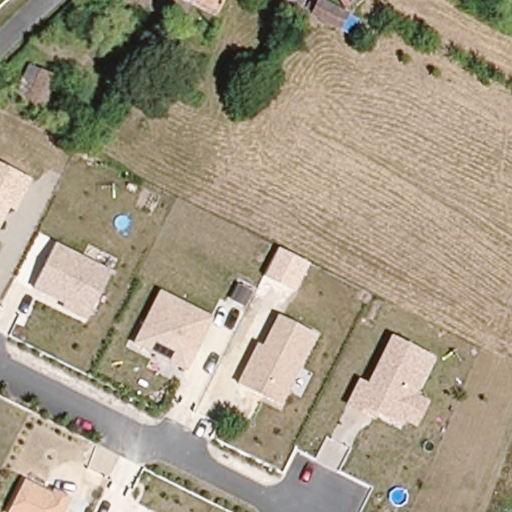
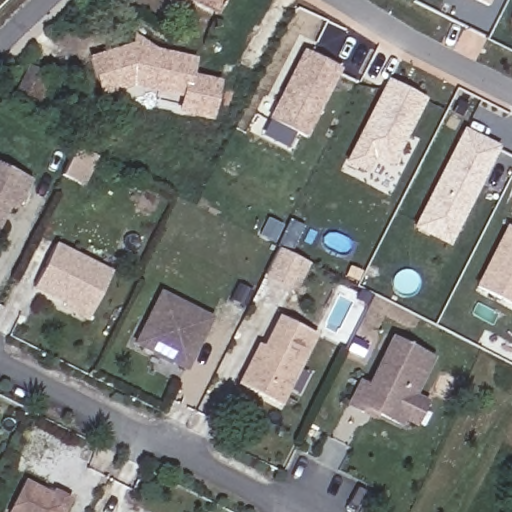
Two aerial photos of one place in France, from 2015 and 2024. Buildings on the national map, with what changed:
unchanged [(218,12),(194,0),(224,0),(218,12)]
demolished [(294,0),(299,0),(298,2),(294,0)]
demolished [(314,0),(326,0),(365,17),(353,41),(307,17),(314,0)]
new [(492,5),(482,0),(494,0),(492,5)]
new [(176,112),(180,96),(132,85),(100,95),(88,55),(130,43),(131,33),(156,49),(195,58),(192,74),(220,79),(211,120),(176,112)]
new [(302,49),(340,68),(305,137),(266,119),(302,49)]
unchanged [(35,108),(19,100),(38,67),(52,75),(35,108)]
new [(378,157),(371,172),(351,162),(390,90),(393,82),(412,91),(430,100),(396,166),(378,157)]
new [(453,245),(421,228),(470,132),(502,149),(453,245)]
new [(80,146),(100,156),(85,186),(65,175),(80,146)]
unchanged [(5,205),(0,215),(0,165),(30,180),(15,210),(5,205)]
unchanged [(0,223),(0,215),(2,220),(0,223)]
new [(512,230),(512,305),(482,289),(512,230)]
unchanged [(115,271),(89,320),(62,310),(66,304),(36,290),(56,243),(115,271)]
new [(282,249),(311,263),(297,290),(268,275),(282,249)]
unchanged [(216,317),(187,371),(134,345),(162,290),(216,317)]
unchanged [(319,334),(284,407),(237,385),(257,341),(264,345),(278,313),(319,334)]
unchanged [(360,378),(368,381),(392,335),(436,357),(418,393),(433,400),(420,428),(405,420),(401,427),(381,415),(377,422),(346,406),(360,378)]
unchanged [(75,495),(67,512),(9,512),(25,479),(52,491),(55,485),(75,495)]

